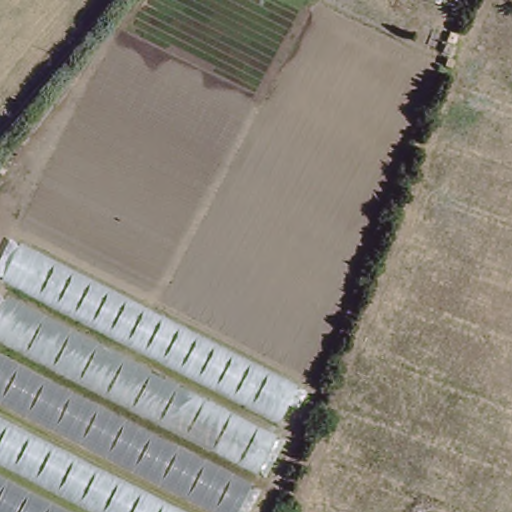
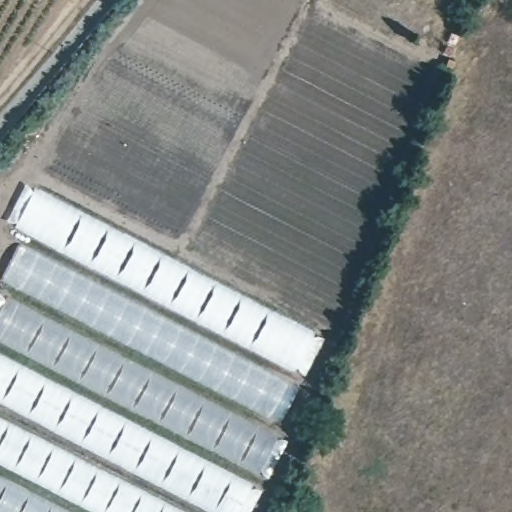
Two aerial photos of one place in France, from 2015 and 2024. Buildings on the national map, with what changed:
new [(297,370),(15,225),(37,188),(316,330),(297,370)]
unchanged [(22,240),(297,387),(282,419),(5,277),(22,240)]
unchanged [(258,512),(0,512),(0,301),(6,288),(287,438),(258,512)]

